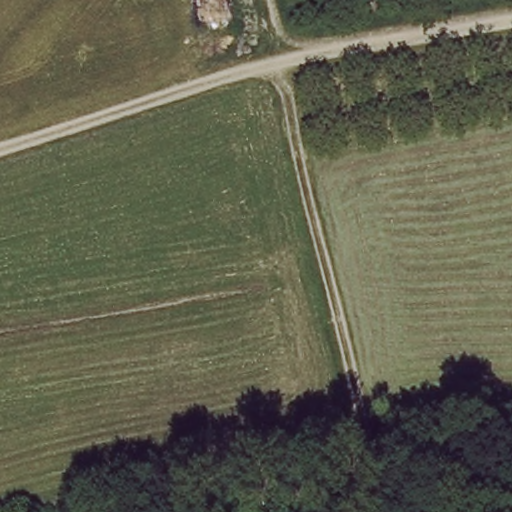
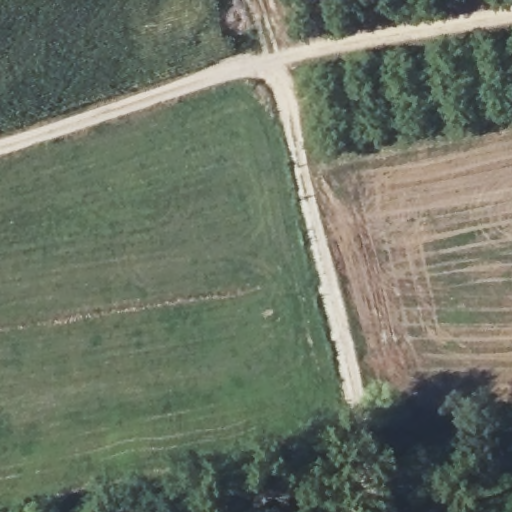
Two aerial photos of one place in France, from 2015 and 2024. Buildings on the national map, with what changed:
unchanged [(503,49),(508,84),(463,89),(453,54),(503,49)]

